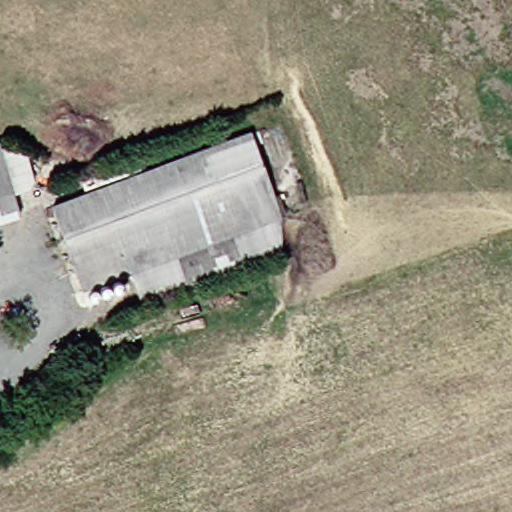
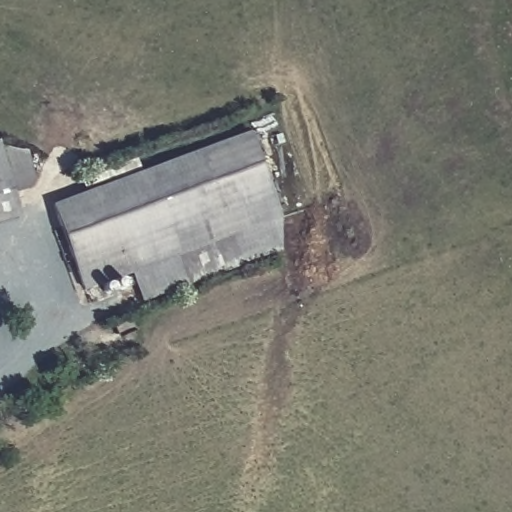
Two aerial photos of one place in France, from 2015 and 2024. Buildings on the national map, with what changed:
unchanged [(251,135),(280,220),(81,288),(52,204),(251,135)]
unchanged [(1,146),(21,217),(0,223),(0,146),(1,146)]

